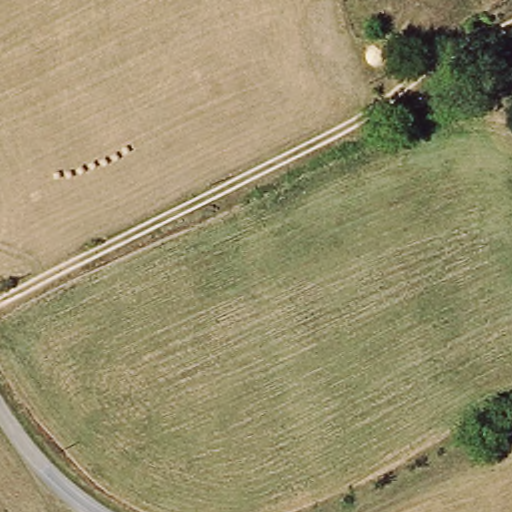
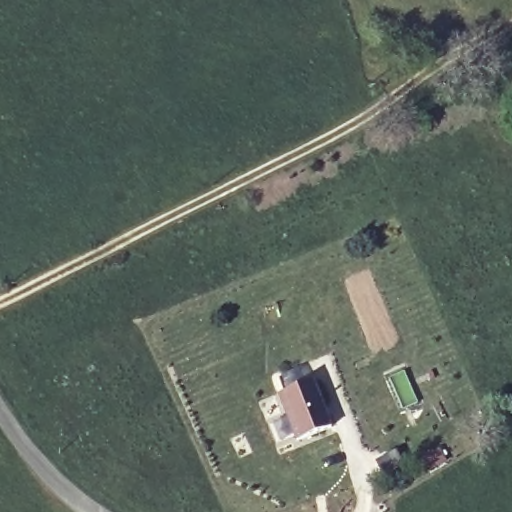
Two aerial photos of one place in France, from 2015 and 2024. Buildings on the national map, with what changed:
new [(316,377),(333,423),(295,440),(277,393),(316,377)]

